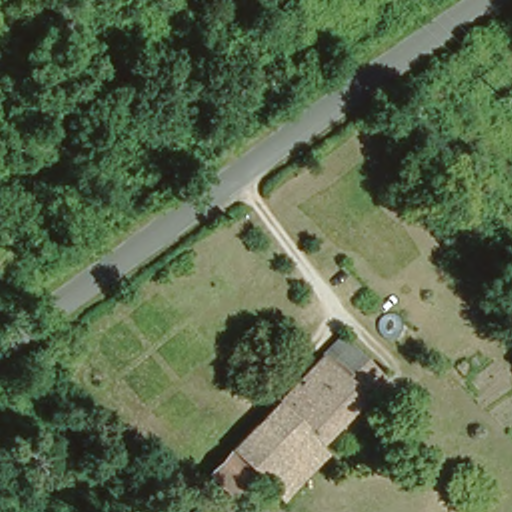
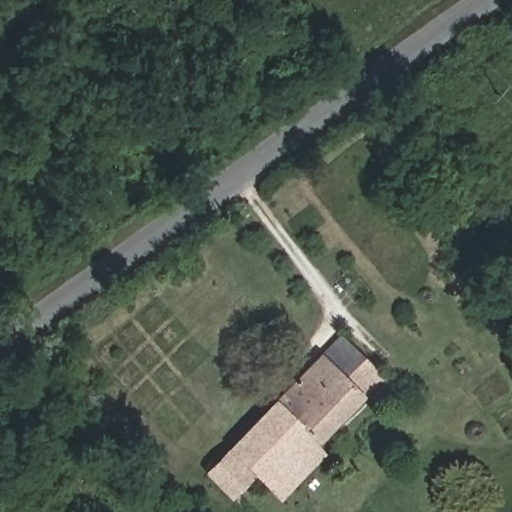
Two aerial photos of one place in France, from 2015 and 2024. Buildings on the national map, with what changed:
unchanged [(207,470),(229,450),(344,339),(385,378),(317,443),(310,435),(260,480),(250,470),(227,490),(207,470)]
unchanged [(310,435),(317,443),(322,450),(275,493),(260,480),(310,435)]

